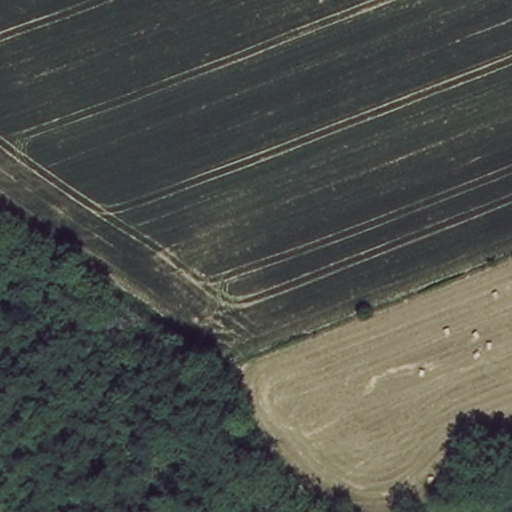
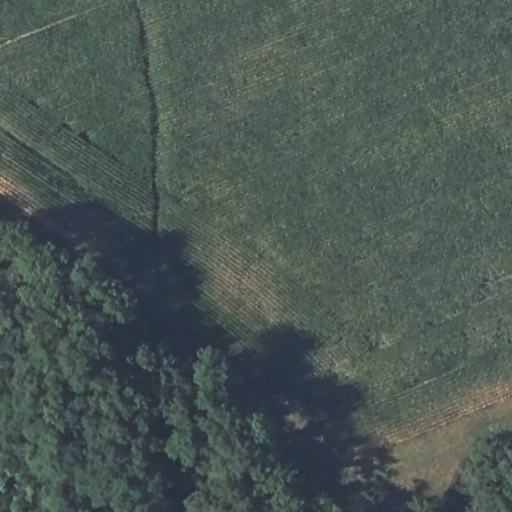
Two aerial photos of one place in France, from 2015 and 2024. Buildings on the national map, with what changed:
[]

